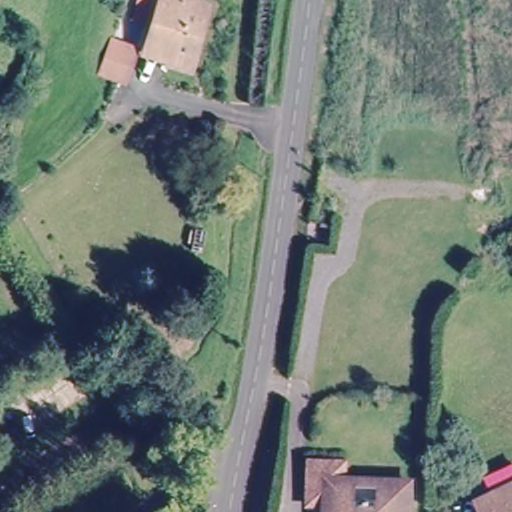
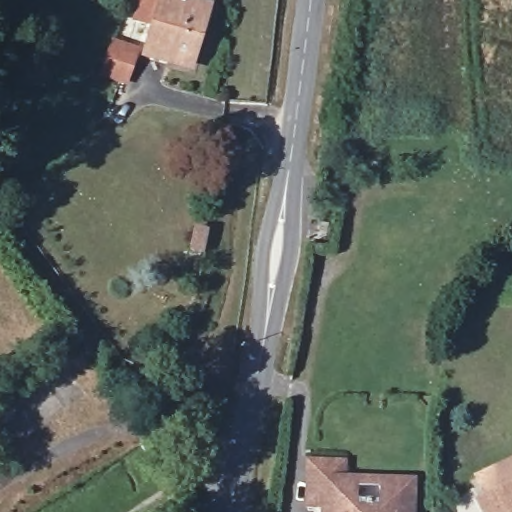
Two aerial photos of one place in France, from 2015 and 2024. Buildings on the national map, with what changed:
unchanged [(186,0),(204,6),(184,65),(139,50),(156,0),(186,0)]
unchanged [(302,497),(303,454),(335,455),(335,470),(322,470),(321,498),(302,497)]
unchanged [(322,470),(335,470),(349,470),(348,491),(376,492),(377,470),(410,472),(409,503),(395,502),(395,512),(334,512),(334,511),(321,510),(321,498),(322,470)]
unchanged [(512,512),(483,512),(476,498),(512,481),(512,512)]

